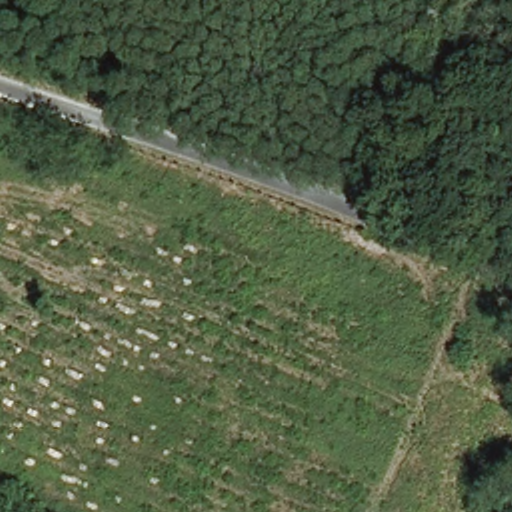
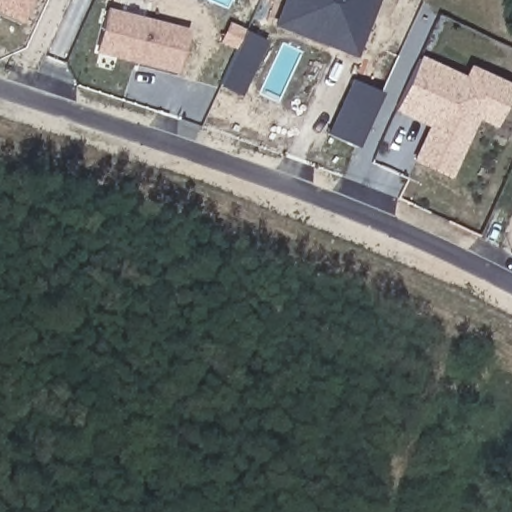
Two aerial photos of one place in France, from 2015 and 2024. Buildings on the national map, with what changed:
new [(0,13),(0,0),(33,0),(22,23),(0,13)]
new [(354,57),(272,25),(281,0),(376,0),(354,57)]
new [(96,54),(107,8),(189,29),(177,75),(96,54)]
new [(239,96),(218,85),(235,49),(221,41),(230,21),(266,41),(239,96)]
new [(497,126),(479,118),(452,177),(412,160),(429,126),(396,111),(422,55),(465,77),(471,65),(512,84),(512,92),(497,126)]
new [(357,147),(327,133),(352,79),(382,93),(357,147)]

